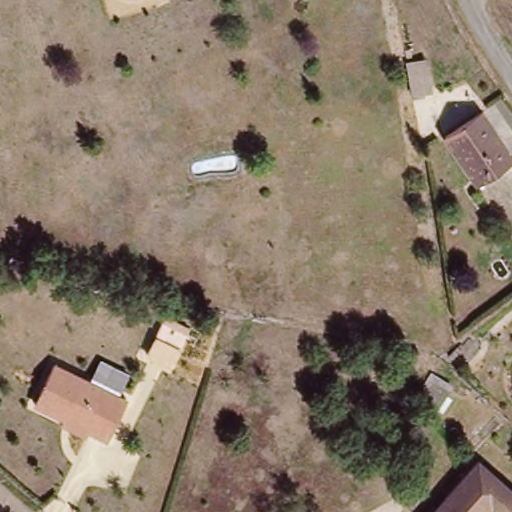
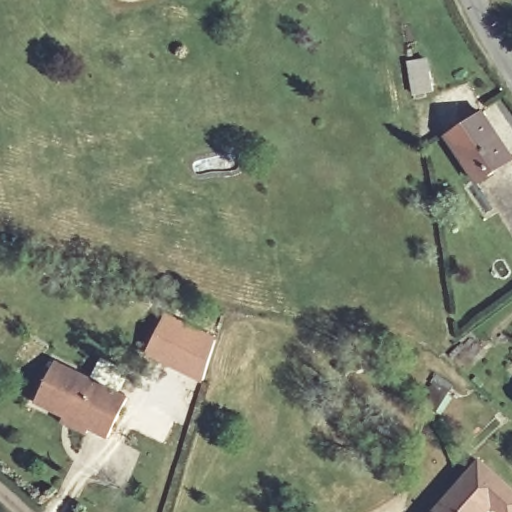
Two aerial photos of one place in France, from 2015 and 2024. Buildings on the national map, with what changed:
unchanged [(443,141),(477,115),(511,160),(477,185),(443,141)]
new [(202,383),(145,355),(165,312),(216,338),(202,383)]
demolished [(397,322),(397,335),(384,332),(385,320),(397,322)]
unchanged [(83,428),(85,425),(62,412),(60,417),(31,401),(50,362),(122,400),(103,439),(83,428)]
unchanged [(512,512),(487,512),(485,510),(483,512),(428,512),(483,459),(512,485),(512,512)]

